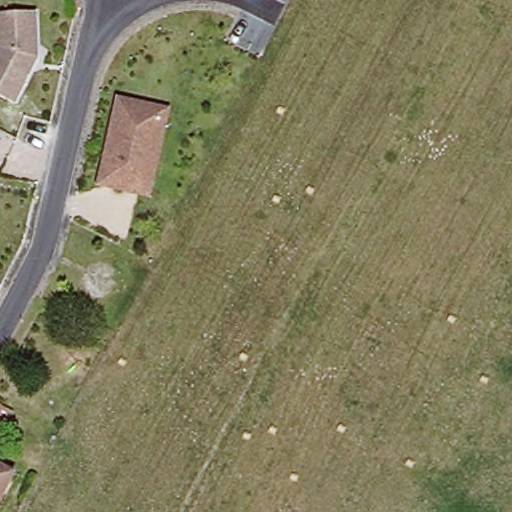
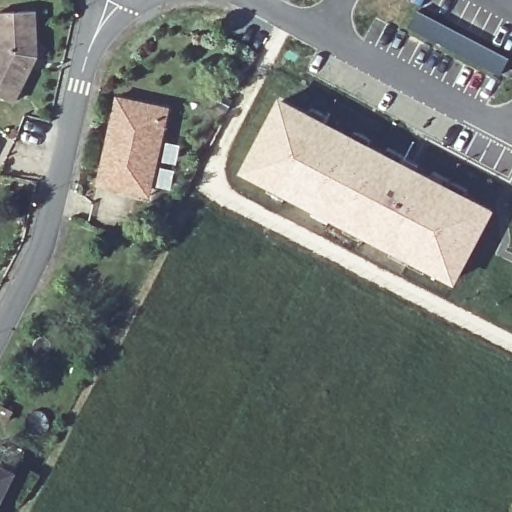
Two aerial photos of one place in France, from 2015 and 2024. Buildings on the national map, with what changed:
unchanged [(0,82),(0,1),(15,0),(34,0),(38,44),(16,90),(0,82)]
new [(418,8),(510,56),(499,78),(465,62),(406,30),(418,8)]
unchanged [(124,187),(101,182),(120,94),(154,101),(172,105),(170,115),(155,184),(153,194),(124,187)]
new [(279,95),(425,170),(496,209),(455,285),(317,212),(238,172),(279,95)]
unchanged [(11,424),(0,417),(0,399),(19,410),(11,424)]
unchanged [(0,499),(0,469),(13,475),(0,499)]

